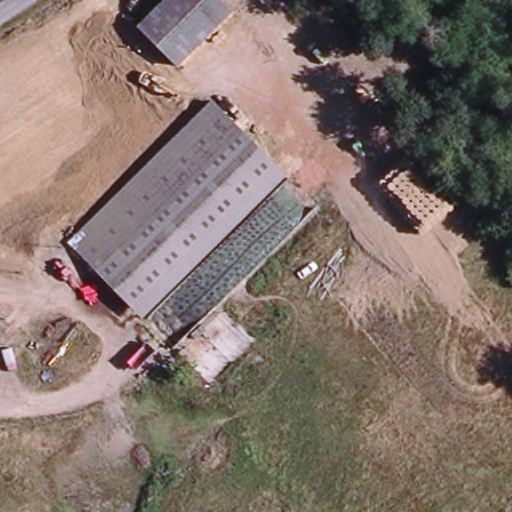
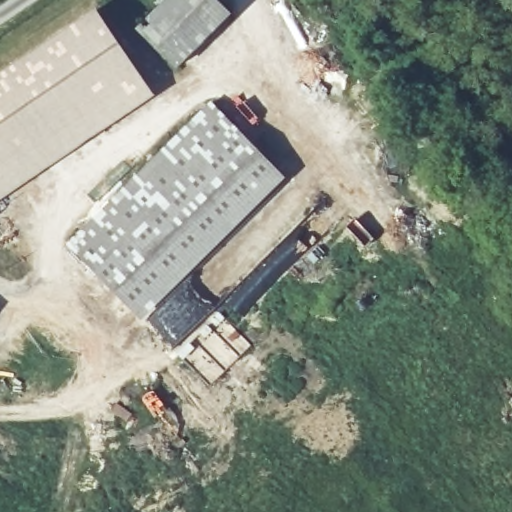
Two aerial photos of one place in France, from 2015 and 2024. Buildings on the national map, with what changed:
unchanged [(173,0),(215,0),(234,21),(180,71),(142,29),(173,0)]
new [(0,199),(0,75),(99,8),(155,95),(0,199)]
unchanged [(287,176),(143,320),(67,244),(210,101),(287,176)]

